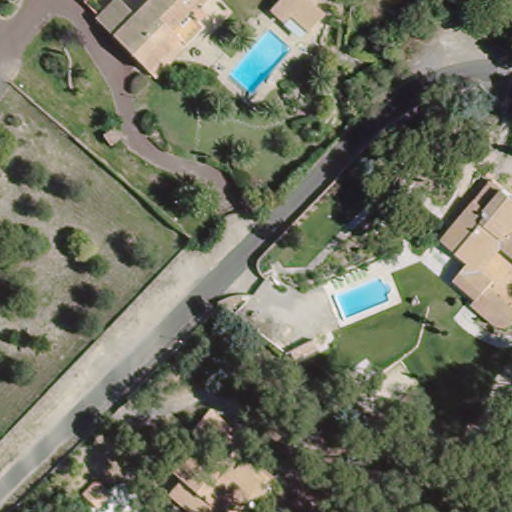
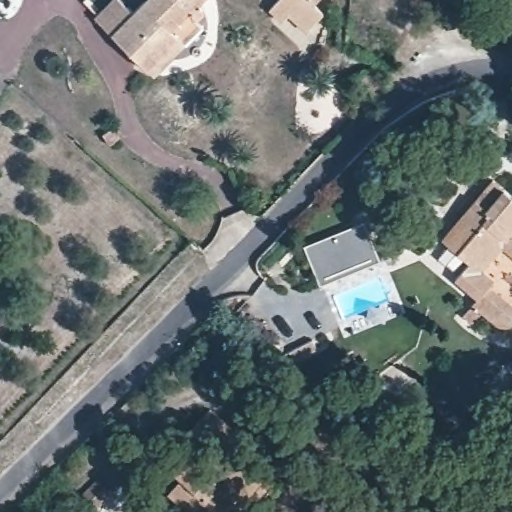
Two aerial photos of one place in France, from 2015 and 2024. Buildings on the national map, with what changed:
unchanged [(99,16),(102,12),(114,0),(126,0),(135,10),(146,0),(167,0),(125,42),(99,16)]
unchanged [(155,71),(148,65),(125,42),(167,0),(199,0),(198,1),(205,7),(197,16),(179,34),(185,41),(155,71)]
unchanged [(312,5),(322,14),(304,32),(286,15),(280,22),(268,10),(277,0),(316,0),(312,5)]
unchanged [(506,245),(483,272),(495,282),(492,287),(482,298),(462,279),(470,271),(444,246),(481,204),(501,181),(512,191),(512,250),(506,245)]
new [(320,285),(305,246),(364,222),(380,260),(320,285)]
unchanged [(492,287),(512,305),(512,330),(505,330),(477,304),(482,298),(492,287)]
unchanged [(230,435),(263,465),(252,476),(258,481),(240,501),(233,496),(218,512),(201,512),(172,488),(184,475),(173,464),(190,448),(203,460),(217,445),(197,426),(215,407),(237,427),(230,435)]

